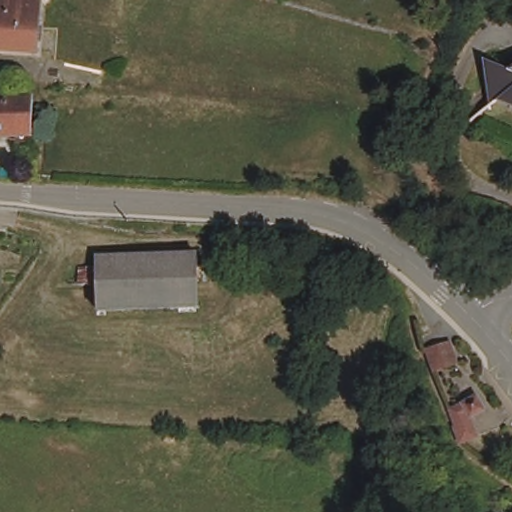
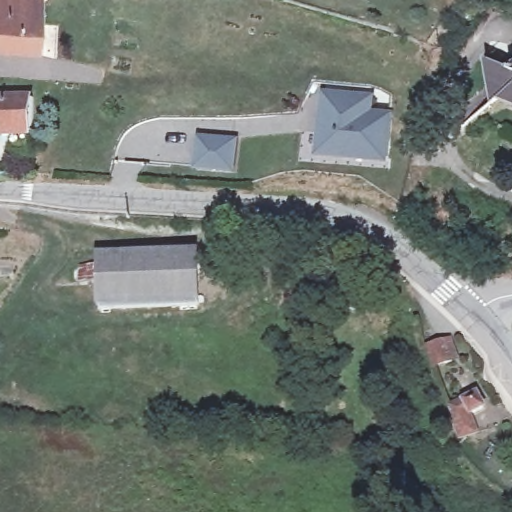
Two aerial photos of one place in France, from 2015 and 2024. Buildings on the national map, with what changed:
unchanged [(15,47),(0,46),(0,0),(20,0),(15,47)]
unchanged [(15,47),(20,0),(41,0),(36,50),(15,47)]
unchanged [(489,71),(509,75),(512,72),(512,104),(504,110),(489,71)]
new [(325,93),(371,96),(369,112),(390,114),(387,160),(320,154),(325,93)]
unchanged [(30,142),(0,137),(0,94),(33,100),(30,142)]
new [(200,137),(235,140),(233,169),(198,166),(200,137)]
unchanged [(207,301),(104,306),(99,257),(202,250),(207,301)]
unchanged [(472,365),(465,368),(463,366),(453,370),(446,354),(457,351),(456,349),(465,346),(472,365)]
unchanged [(468,434),(455,439),(449,425),(451,424),(446,409),(459,403),(471,397),(477,406),(464,413),(462,414),(468,434)]

